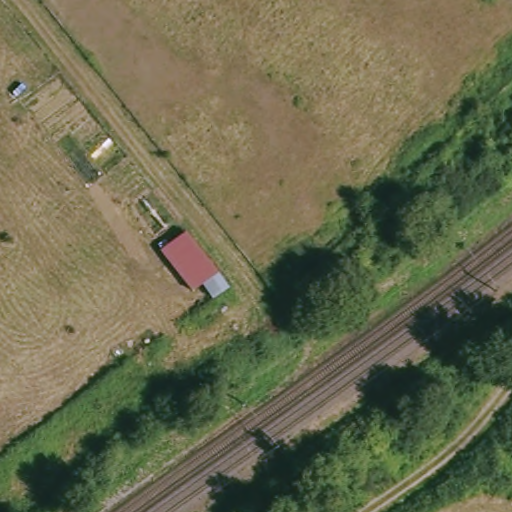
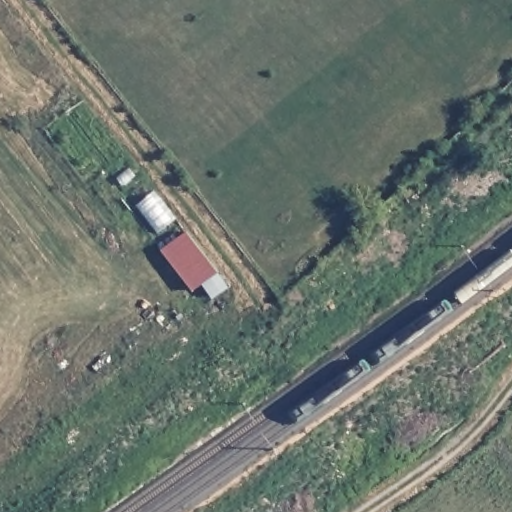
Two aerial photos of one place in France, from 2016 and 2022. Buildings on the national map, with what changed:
unchanged [(207,300),(195,282),(186,291),(156,249),(185,225),(214,270),(229,285),(207,300)]

